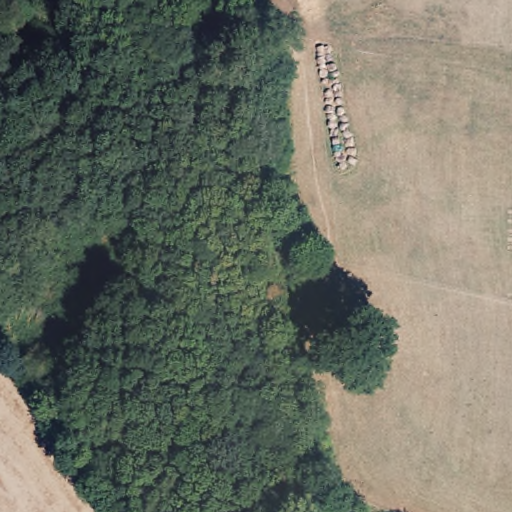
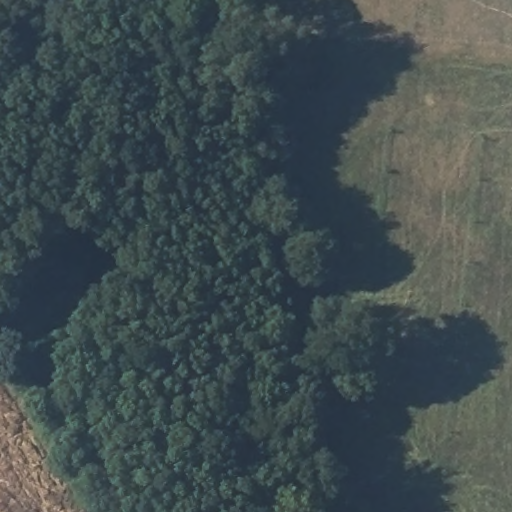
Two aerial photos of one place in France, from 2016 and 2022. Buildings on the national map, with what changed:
[]

